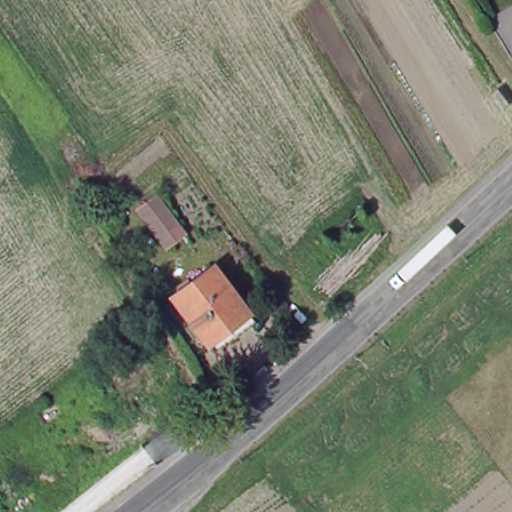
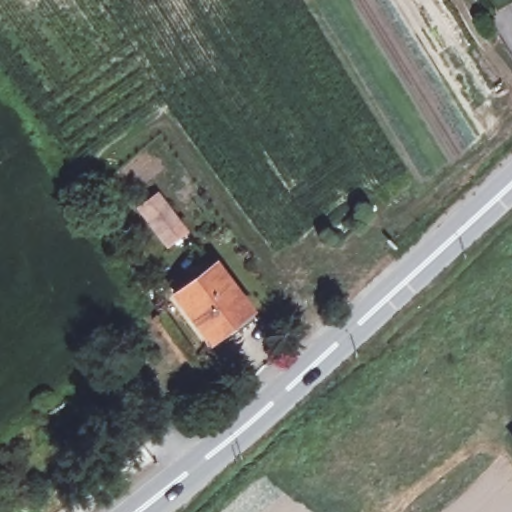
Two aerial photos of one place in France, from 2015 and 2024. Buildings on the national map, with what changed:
unchanged [(160,252),(131,204),(156,187),(184,232),(160,252)]
unchanged [(256,315),(239,327),(236,325),(214,341),(184,300),(223,270),(256,315)]

